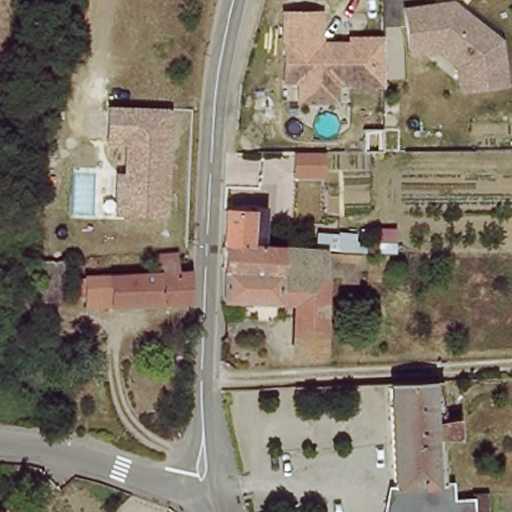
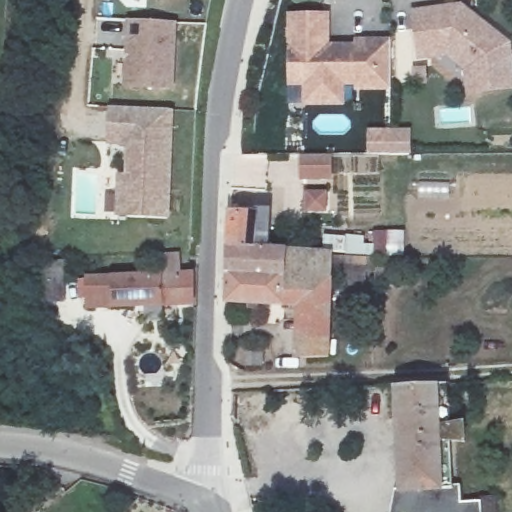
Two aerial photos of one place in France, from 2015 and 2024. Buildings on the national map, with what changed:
unchanged [(461,11),(510,47),(512,68),(512,95),(467,99),(465,75),(448,63),(419,64),(412,15),(461,11)]
unchanged [(332,19),(333,52),(356,51),(357,45),(390,45),(389,95),(350,95),(348,112),(306,111),(306,93),(289,92),(288,22),(332,19)]
new [(127,89),(130,21),(178,23),(176,91),(127,89)]
unchanged [(175,115),(173,225),(120,224),(119,181),(127,180),(126,156),(112,156),(112,112),(175,115)]
new [(411,152),(392,152),(372,152),(372,129),(392,129),(392,130),(410,129),(411,152)]
new [(333,156),(333,175),(305,175),(306,155),(333,156)]
unchanged [(303,280),(227,278),(229,215),(261,216),(261,255),(290,255),(303,256),(303,280)]
unchanged [(412,229),(410,260),(377,256),(382,227),(412,229)]
unchanged [(303,280),(303,256),(337,256),(335,358),(302,360),(302,313),(229,307),(226,307),(227,278),(303,280)]
unchanged [(185,276),(195,276),(196,309),(91,314),(89,282),(165,278),(164,264),(184,263),(185,276)]
demolished [(51,266),(59,266),(63,266),(65,300),(41,301),(39,266),(51,266)]
unchanged [(400,490),(409,490),(400,383),(450,382),(452,425),(467,424),(468,445),(452,445),(455,488),(465,488),(466,503),(485,502),(485,512),(400,512),(400,490)]

